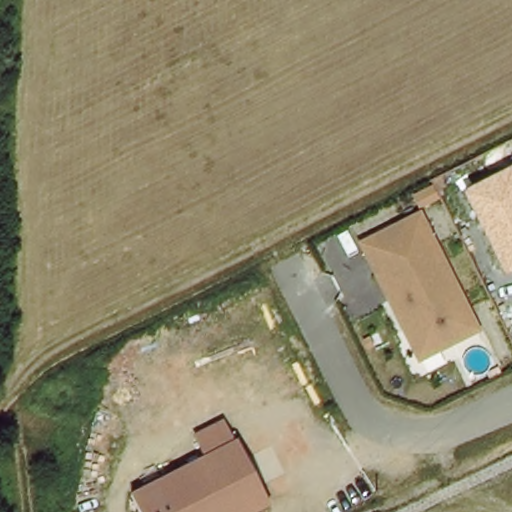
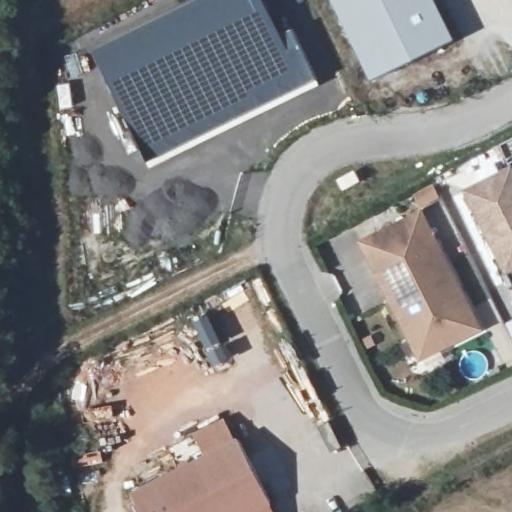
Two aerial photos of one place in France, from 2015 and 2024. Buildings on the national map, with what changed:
new [(265,0),(282,33),(292,29),(316,80),(146,164),(93,51),(197,0),(265,0)]
new [(369,81),(330,0),(434,0),(453,39),(369,81)]
unchanged [(512,166),(512,167),(512,268),(505,272),(464,191),(512,166)]
new [(355,172),(360,182),(344,191),(339,181),(355,172)]
unchanged [(359,245),(418,216),(477,332),(417,362),(359,245)]
new [(512,268),(512,284),(505,272),(512,268)]
unchanged [(272,511),(269,512),(142,512),(132,491),(239,442),(272,511)]

